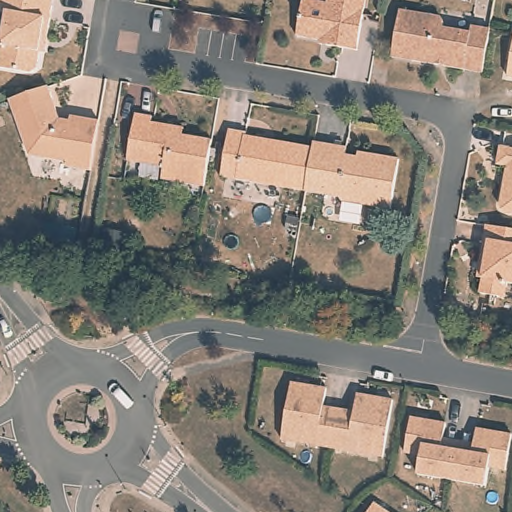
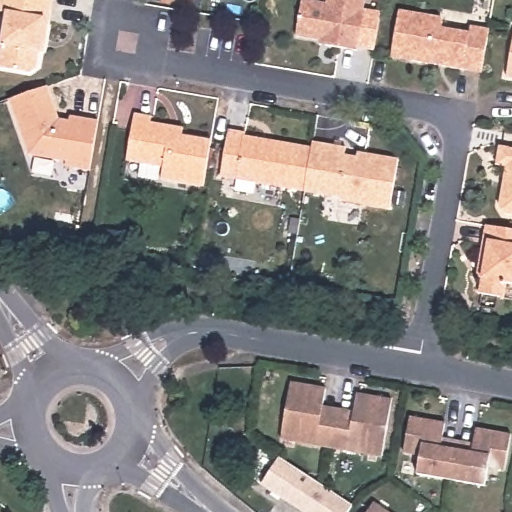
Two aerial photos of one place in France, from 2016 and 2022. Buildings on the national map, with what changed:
unchanged [(42,64),(35,66),(4,62),(13,7),(5,7),(6,0),(58,0),(52,30),(50,44),(45,44),(42,64)]
unchanged [(328,38),(328,36),(301,30),(305,0),(368,0),(360,44),(328,38)]
unchanged [(397,45),(404,4),(445,11),(451,16),(451,24),(476,27),(477,20),(495,23),(488,68),(417,55),(396,51),(397,45)]
unchanged [(73,157),(73,154),(36,148),(17,94),(54,81),(66,112),(69,112),(78,115),(78,110),(105,113),(97,161),(73,157)]
unchanged [(206,180),(163,172),(164,160),(129,154),(137,107),(153,110),(153,117),(171,120),(171,127),(213,134),(206,180)]
unchanged [(227,172),(235,125),(251,127),(250,132),(318,142),(311,185),(311,186),(227,172)]
unchanged [(352,141),(351,149),(370,152),(371,146),(404,152),(396,203),(347,195),(343,190),(311,185),(318,142),(319,135),(352,141)]
unchanged [(512,144),(512,161),(503,159),(505,143),(512,144)]
unchanged [(506,200),(512,167),(512,207),(506,200)]
unchanged [(486,256),(493,221),(512,224),(512,288),(511,294),(487,290),(489,275),(483,274),(486,256)]
unchanged [(326,402),(362,408),(365,390),(399,395),(389,452),(288,434),(299,378),(329,382),(326,402)]
unchanged [(450,435),(481,440),(483,423),(512,428),(512,467),(494,465),(492,481),(430,470),(432,453),(415,451),(421,413),(452,418),(450,435)]
new [(349,512),(301,512),(261,487),(280,456),(354,506),(349,512)]
unchanged [(400,512),(370,512),(380,498),(400,512)]

